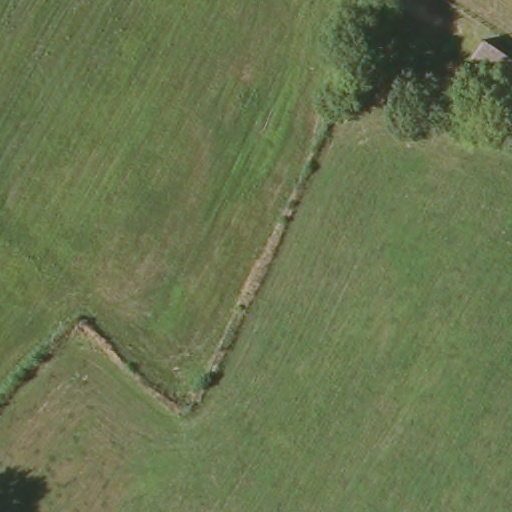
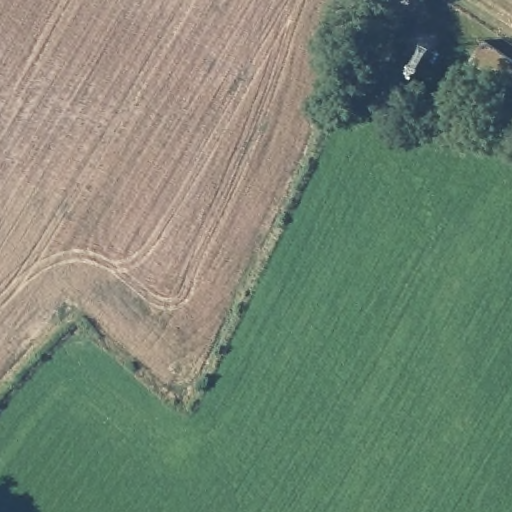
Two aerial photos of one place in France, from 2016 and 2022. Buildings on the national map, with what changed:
unchanged [(512,59),(512,85),(472,60),(485,41),(512,59)]

